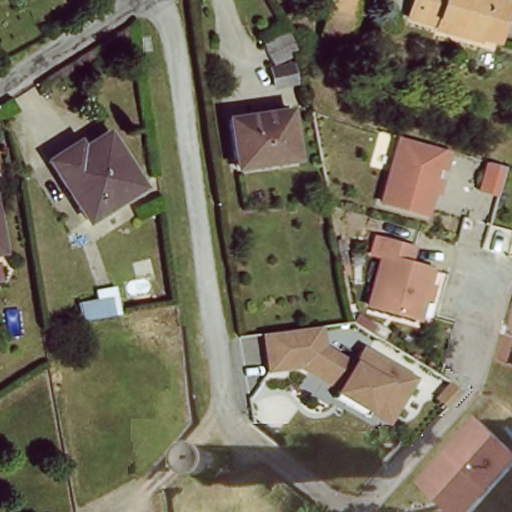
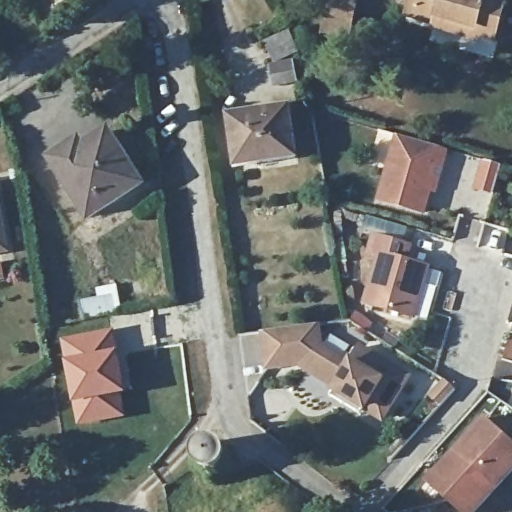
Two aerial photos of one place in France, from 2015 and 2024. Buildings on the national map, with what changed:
demolished [(31,11),(23,0),(49,0),(31,11)]
unchanged [(329,5),(330,0),(357,0),(354,12),(351,26),(349,36),(324,31),(326,19),(329,5)]
unchanged [(412,0),(494,0),(505,3),(494,40),(437,23),(408,14),(412,0)]
unchanged [(296,52),(297,54),(271,65),(263,46),(287,34),(296,52)]
unchanged [(271,70),(289,67),(291,84),(274,86),(271,70)]
unchanged [(232,159),(228,118),(288,112),(293,161),(256,165),(233,166),(232,159)]
unchanged [(109,135),(143,188),(89,221),(80,207),(53,161),(80,145),(85,151),(109,135)]
unchanged [(422,145),(439,150),(434,167),(429,166),(415,213),(371,200),(391,135),(422,145)]
new [(485,157),(501,162),(493,190),(476,185),(485,157)]
unchanged [(0,253),(0,223),(8,250),(0,253)]
unchanged [(409,246),(404,261),(426,268),(412,317),(364,303),(378,255),(373,254),(378,237),(409,246)]
new [(5,280),(0,280),(0,260),(5,280)]
unchanged [(81,316),(78,299),(98,295),(97,286),(113,283),(118,309),(81,316)]
new [(113,326),(123,378),(127,418),(76,427),(60,339),(113,326)]
unchanged [(414,378),(385,425),(299,369),(266,371),(262,333),(321,326),(324,348),(351,363),(361,345),(414,378)]
new [(444,380),(455,388),(440,403),(431,395),(444,380)]
unchanged [(470,512),(456,512),(441,498),(449,490),(430,472),(480,420),(512,450),(512,467),(470,512)]

